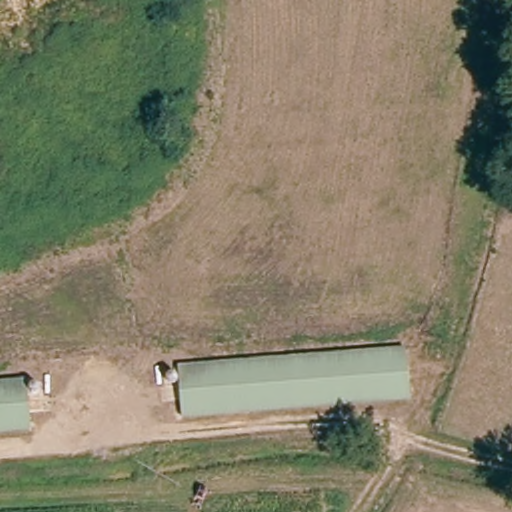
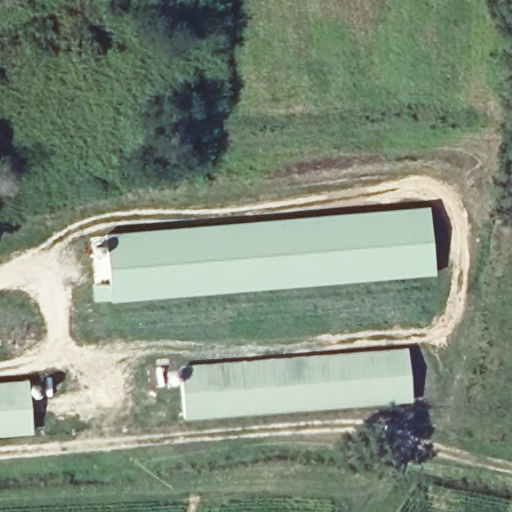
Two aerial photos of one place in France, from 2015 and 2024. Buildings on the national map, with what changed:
new [(429,205),(435,273),(92,300),(91,284),(108,283),(105,232),(429,205)]
unchanged [(413,393),(185,413),(180,365),(408,346),(413,393)]
unchanged [(0,428),(0,381),(29,378),(34,425),(0,428)]

